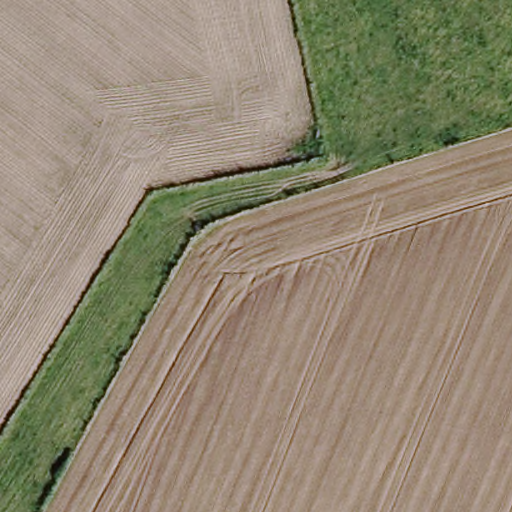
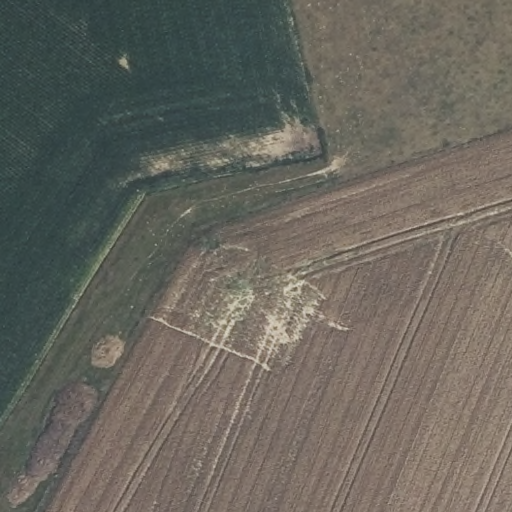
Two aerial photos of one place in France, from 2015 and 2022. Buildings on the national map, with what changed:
[]

